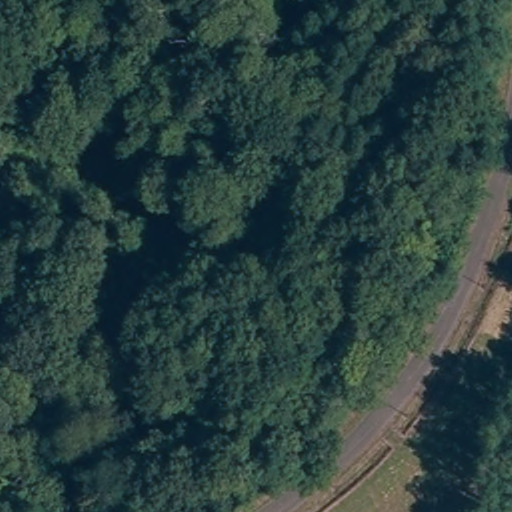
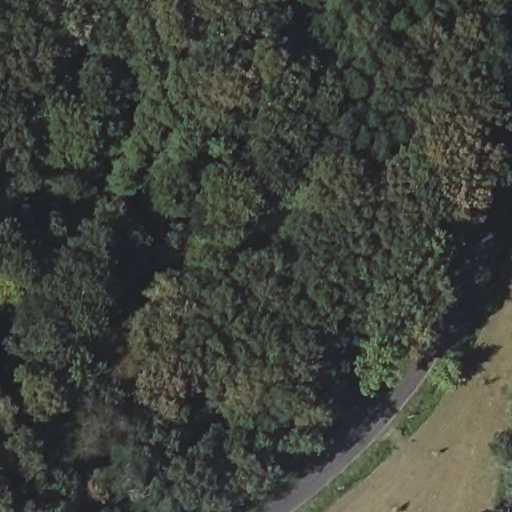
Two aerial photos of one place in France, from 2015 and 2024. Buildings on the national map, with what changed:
[]

